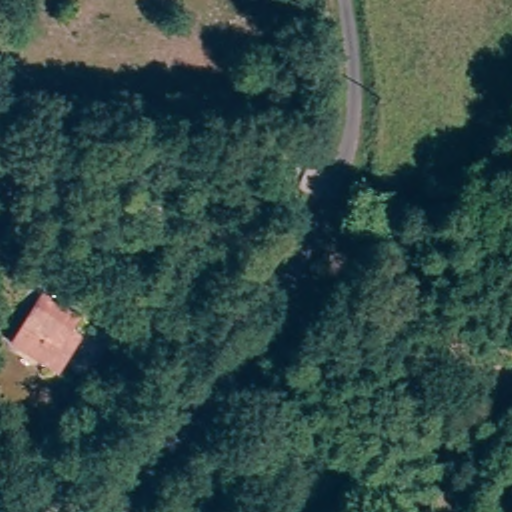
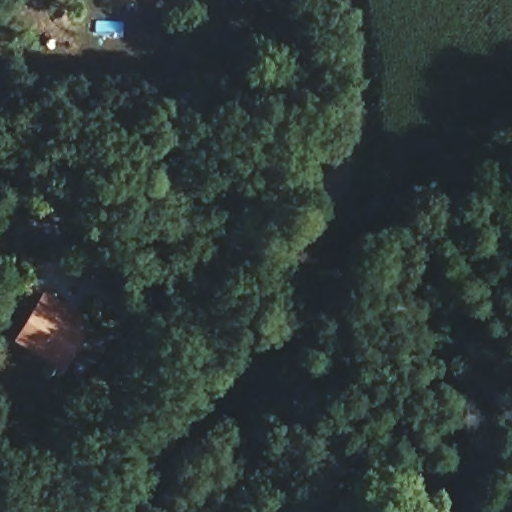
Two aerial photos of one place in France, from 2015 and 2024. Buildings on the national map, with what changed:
unchanged [(72,330),(33,308),(45,288),(83,310),(72,330)]
unchanged [(48,359),(16,340),(33,308),(72,330),(81,335),(70,355),(59,376),(43,368),(48,359)]

